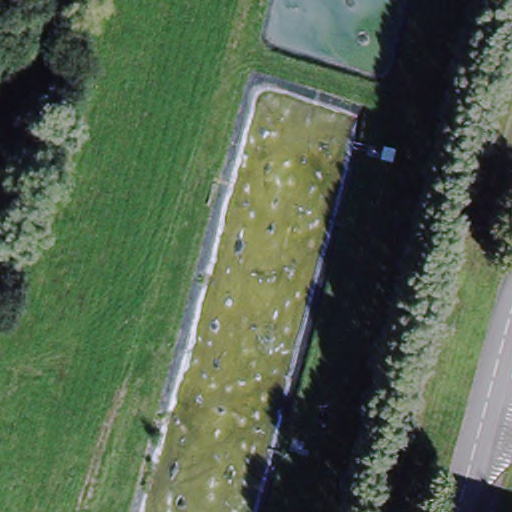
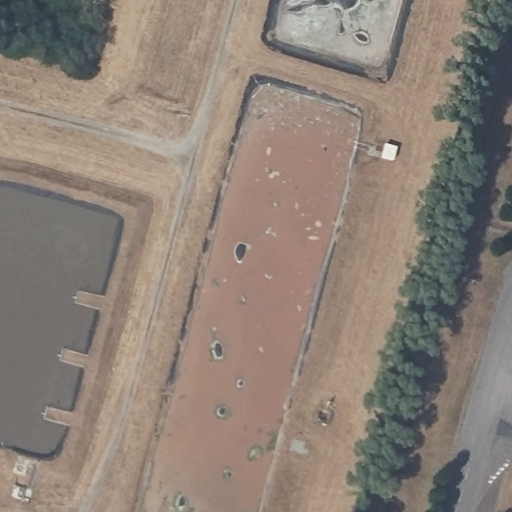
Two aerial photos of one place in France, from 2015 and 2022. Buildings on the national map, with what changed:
unchanged [(383,145),(396,148),(393,161),(380,159),(383,145)]

